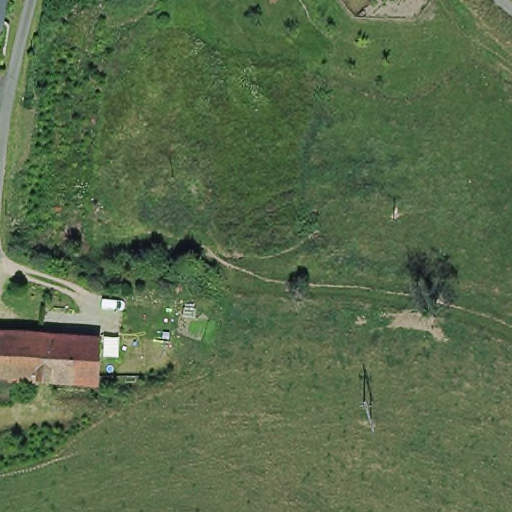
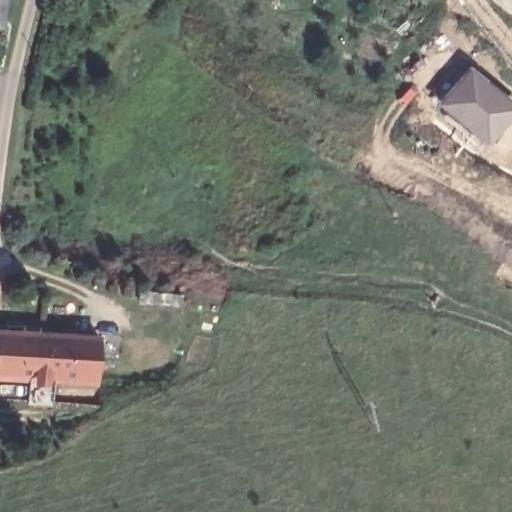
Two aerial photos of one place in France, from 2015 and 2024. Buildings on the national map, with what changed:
unchanged [(0,15),(0,0),(8,0),(5,15),(0,15)]
new [(512,103),(512,118),(490,146),(438,105),(468,67),(512,103)]
unchanged [(2,372),(0,372),(0,327),(5,327),(57,332),(50,377),(2,372)]
unchanged [(100,382),(50,377),(57,332),(104,337),(100,382)]

